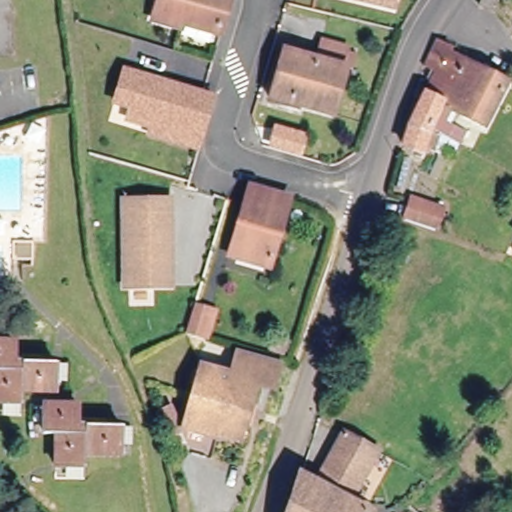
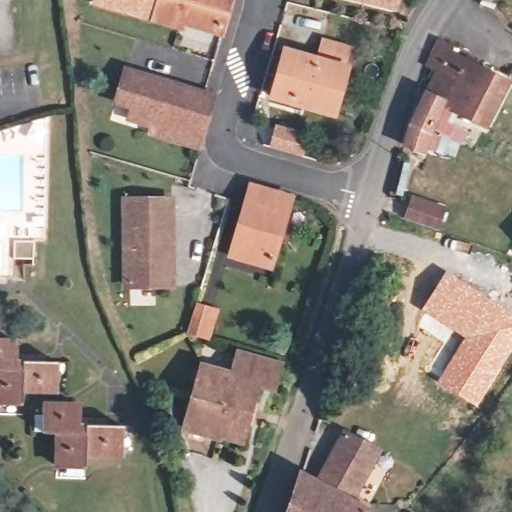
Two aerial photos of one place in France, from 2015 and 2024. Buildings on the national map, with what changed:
new [(127,0),(122,15),(94,5),(95,0),(127,0)]
new [(159,0),(151,25),(122,15),(127,0),(159,0)]
unchanged [(216,40),(180,30),(180,34),(151,25),(159,0),(225,0),(229,1),(216,40)]
unchanged [(425,93),(417,89),(438,41),(458,52),(465,62),(445,101),(425,93)]
unchanged [(331,112),(271,96),(283,54),(316,62),(325,42),(348,49),(331,112)]
unchanged [(445,101),(465,62),(505,85),(483,129),(442,110),(445,101)]
unchanged [(201,143),(154,130),(155,122),(131,115),(135,103),(117,98),(126,67),(206,90),(204,98),(211,100),(202,131),(205,131),(201,143)]
unchanged [(407,132),(425,93),(445,101),(442,110),(432,130),(445,140),(437,157),(425,151),(420,153),(404,147),(407,132)]
unchanged [(224,255),(236,209),(242,190),(285,201),(265,268),(224,255)]
unchanged [(405,213),(412,194),(446,206),(439,225),(405,213)]
unchanged [(125,283),(123,196),(169,195),(170,283),(125,283)]
unchanged [(37,237),(36,256),(16,255),(17,236),(37,237)]
new [(422,314),(418,311),(445,270),(512,312),(512,348),(475,406),(435,383),(462,338),(452,331),(445,342),(416,325),(422,314)]
unchanged [(212,303),(203,332),(185,326),(194,297),(212,303)]
unchanged [(24,391),(22,406),(0,405),(0,341),(19,342),(18,365),(30,365),(30,359),(62,361),(60,394),(24,391)]
unchanged [(212,432),(211,436),(177,426),(195,363),(225,371),(232,347),(276,361),(270,383),(250,376),(248,383),(254,386),(250,400),(242,426),(238,440),(212,432)]
unchanged [(165,431),(157,408),(156,407),(170,402),(177,426),(177,427),(165,431)]
unchanged [(121,462),(84,460),(84,475),(54,473),(55,441),(44,440),(45,410),(80,411),(79,433),(91,433),(91,427),(123,430),(121,462)]
unchanged [(303,471),(318,479),(345,430),(357,438),(375,448),(375,450),(355,487),(370,496),(367,502),(370,504),(367,512),(291,512),(303,471)]

